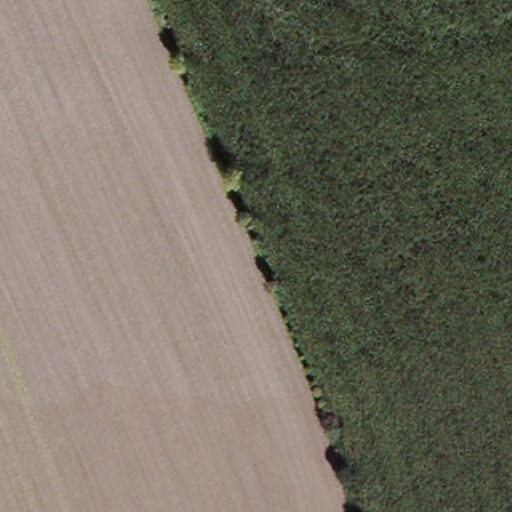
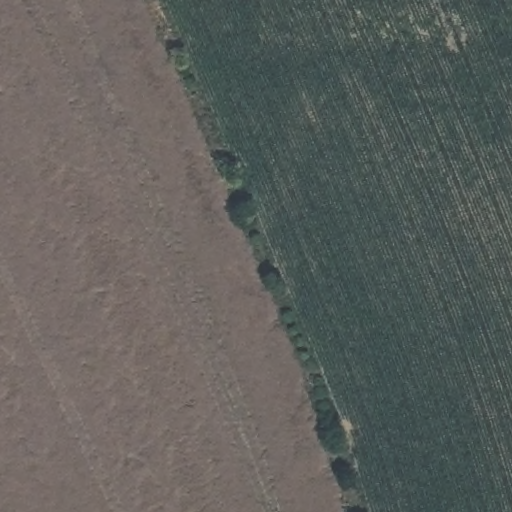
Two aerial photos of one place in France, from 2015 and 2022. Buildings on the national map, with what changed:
[]

